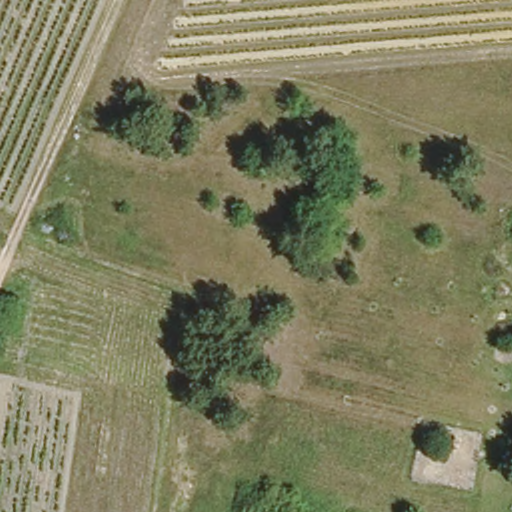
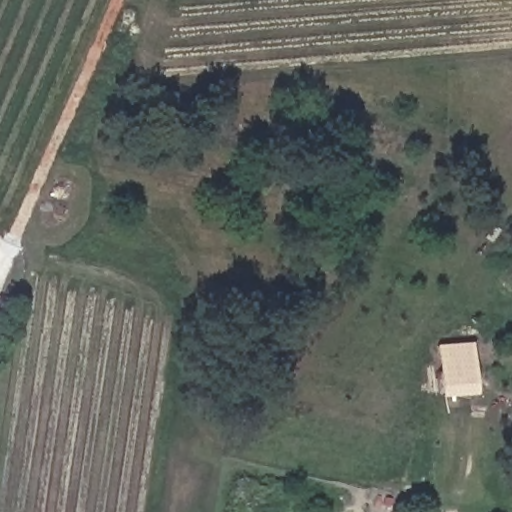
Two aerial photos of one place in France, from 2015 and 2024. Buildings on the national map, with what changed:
new [(473,341),(478,392),(441,396),(437,344),(473,341)]

